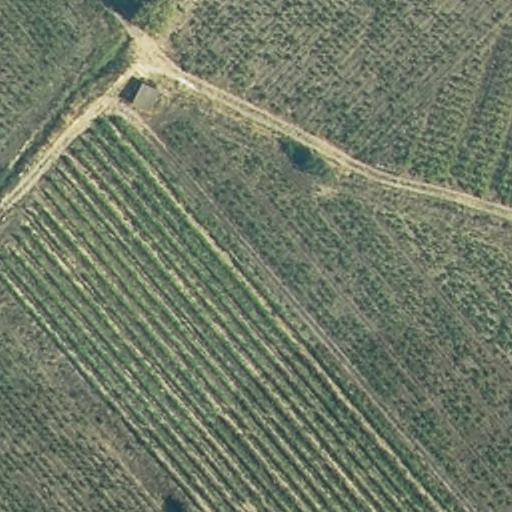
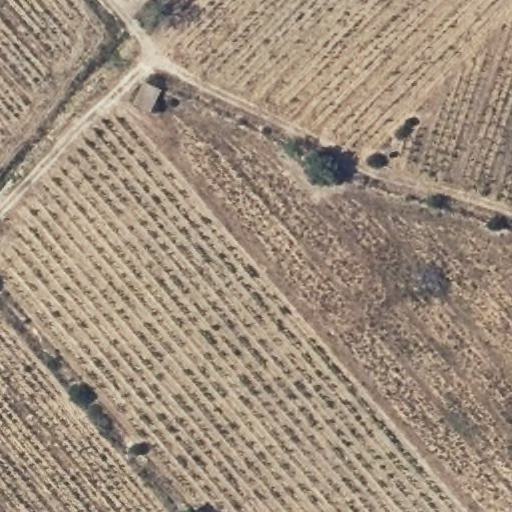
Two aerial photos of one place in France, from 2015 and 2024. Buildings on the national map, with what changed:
unchanged [(130,101),(142,80),(160,86),(149,111),(130,101)]

